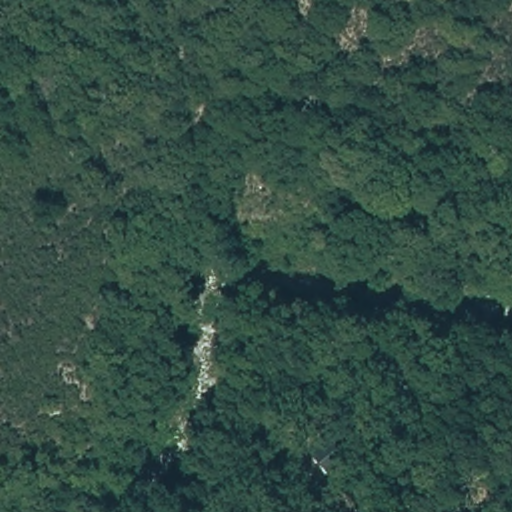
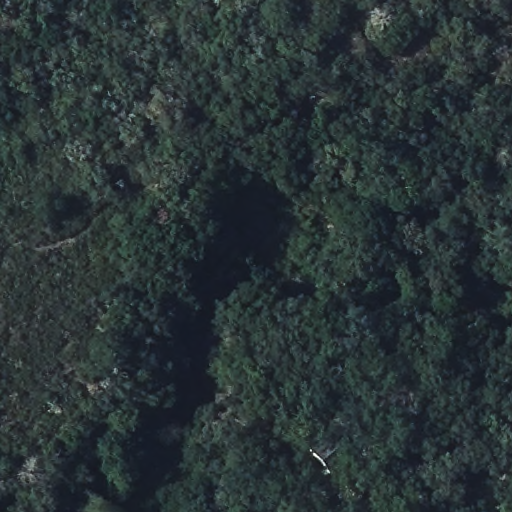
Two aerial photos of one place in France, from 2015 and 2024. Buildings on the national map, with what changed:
unchanged [(308,454),(330,432),(355,461),(330,479),(308,454)]

